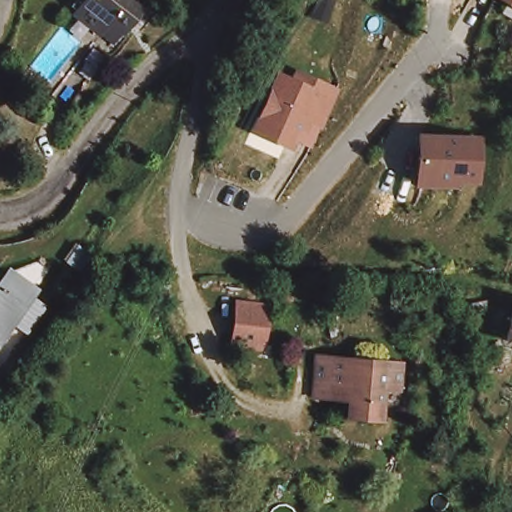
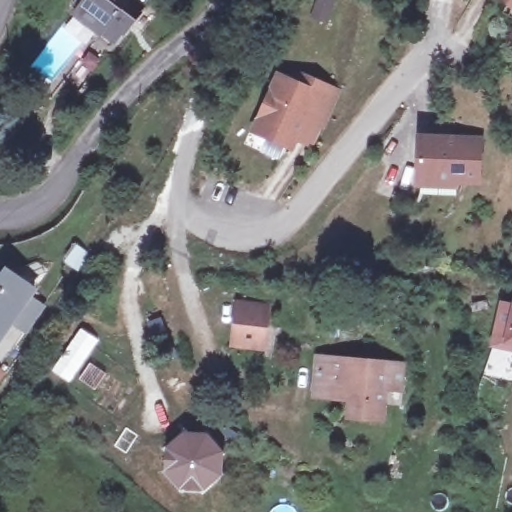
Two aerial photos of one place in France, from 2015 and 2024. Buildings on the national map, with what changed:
unchanged [(85,14),(94,0),(135,0),(148,8),(127,41),(85,14)]
unchanged [(500,0),(512,0),(512,7),(500,0)]
unchanged [(278,69),(298,77),(300,72),(343,88),(328,131),(304,122),(294,148),(253,131),(278,69)]
unchanged [(486,135),(481,184),(416,183),(421,132),(486,135)]
unchanged [(33,299),(0,346),(0,277),(33,299)]
unchanged [(270,305),(267,345),(237,342),(241,302),(270,305)]
unchanged [(512,320),(512,349),(492,346),(495,335),(508,338),(511,326),(512,320)]
unchanged [(350,400),(333,399),(314,398),(315,388),(317,358),(363,361),(363,366),(384,368),(384,363),(402,364),(401,389),(384,388),(382,420),(358,419),(349,418),(350,400)]
new [(163,470),(164,448),(164,447),(185,431),(207,431),(225,452),(224,474),(202,494),(195,491),(181,492),(179,490),(162,471),(163,470)]

